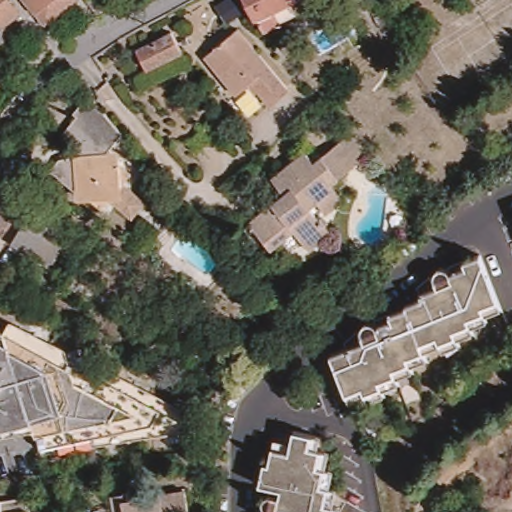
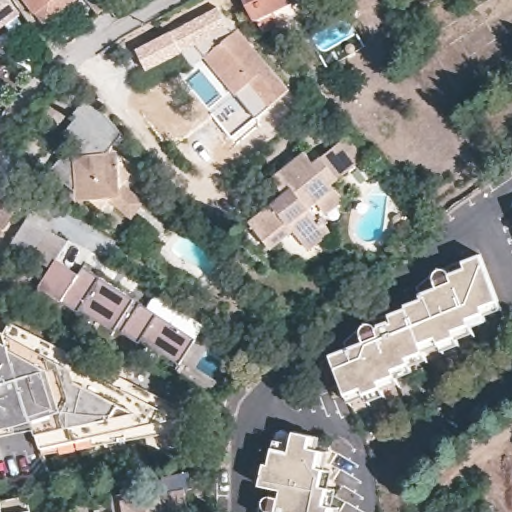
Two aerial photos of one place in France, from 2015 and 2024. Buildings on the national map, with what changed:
unchanged [(2,19),(12,31),(0,41),(0,0),(9,0),(16,8),(2,19)]
unchanged [(49,21),(31,0),(75,0),(49,21)]
unchanged [(251,9),(221,26),(214,15),(241,0),(242,0),(251,9)]
unchanged [(278,10),(284,23),(270,30),(260,18),(258,16),(251,0),(298,0),(278,10)]
unchanged [(291,86),(273,102),(251,77),(236,91),(204,55),(236,26),(291,86)]
unchanged [(154,71),(141,51),(174,30),(186,50),(154,71)]
unchanged [(195,40),(189,43),(185,35),(191,32),(195,40)]
new [(3,53),(0,55),(0,50),(3,53)]
unchanged [(130,224),(107,205),(101,212),(100,212),(99,212),(98,212),(90,205),(85,205),(51,175),(62,163),(70,162),(75,166),(80,161),(72,152),(71,145),(63,137),(94,101),(122,134),(108,152),(118,160),(119,170),(129,179),(122,187),(123,193),(143,210),(130,224)]
unchanged [(325,220),(334,230),(313,249),(297,231),(275,251),(254,225),(287,194),(275,180),(306,153),(315,164),(350,133),(369,155),(334,185),(337,189),(347,200),(325,220)]
unchanged [(0,208),(0,186),(10,192),(0,208)]
unchanged [(39,261),(33,257),(14,244),(32,211),(53,224),(61,228),(39,261)]
unchanged [(2,230),(0,231),(0,228),(2,230)]
unchanged [(360,390),(344,394),(341,381),(329,339),(344,335),(341,327),(355,318),(358,321),(359,321),(360,321),(361,320),(361,319),(361,317),(361,316),(362,314),(363,313),(365,312),(368,312),(370,313),(372,314),(373,314),(374,313),(375,312),(375,310),(374,305),(374,304),(374,303),(375,303),(396,296),(398,298),(399,297),(400,296),(401,295),(401,294),(401,290),(418,285),(415,271),(429,260),(430,262),(432,262),(433,261),(434,260),(435,258),(435,257),(436,255),(437,254),(439,253),(441,252),(442,253),(444,253),(445,254),(446,255),(446,256),(447,257),(448,257),(450,257),(451,256),(453,256),(452,248),(480,241),(497,302),(502,316),(487,320),(488,324),(471,329),(472,334),(455,340),(457,345),(440,350),(439,345),(422,350),(424,358),(408,363),(409,370),(392,375),(393,381),(377,386),(378,390),(361,394),(360,390)]
new [(99,277),(135,300),(158,315),(195,339),(178,366),(140,340),(138,341),(115,327),(113,330),(80,309),(78,312),(61,301),(84,266),(99,277)]
unchanged [(63,351),(110,375),(189,416),(183,437),(40,458),(33,433),(0,437),(0,319),(63,351)]
unchanged [(260,505),(263,501),(267,498),(271,493),(278,492),(279,484),(257,481),(260,459),(266,459),(268,444),(269,436),(287,438),(287,434),(304,436),(312,437),(311,448),(315,449),(324,450),(322,466),(330,467),(328,484),(337,486),(335,502),(342,503),(340,512),(262,512),(261,510),(260,505)]
unchanged [(123,494),(144,490),(144,495),(185,489),(188,512),(114,512),(112,496),(123,494)]
unchanged [(29,497),(31,512),(0,512),(0,499),(1,499),(1,502),(29,497)]

